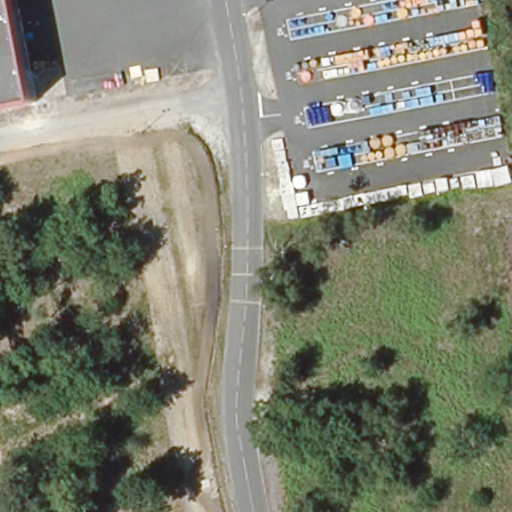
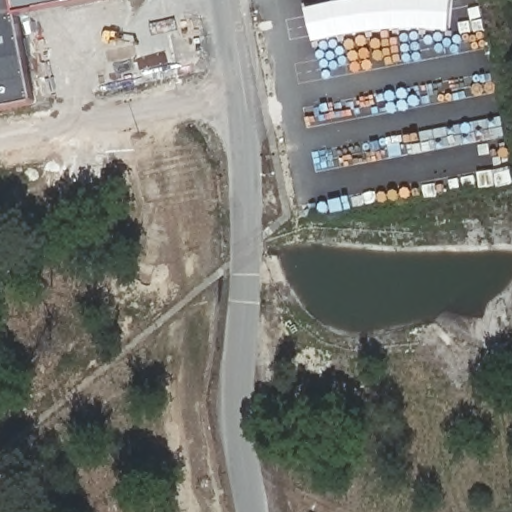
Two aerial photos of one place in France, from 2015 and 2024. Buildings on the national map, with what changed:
unchanged [(0,107),(0,0),(12,0),(33,101),(0,107)]
new [(16,17),(12,0),(103,0),(21,16),(16,17)]
new [(311,40),(306,9),(345,0),(452,0),(451,27),(382,30),(311,40)]

